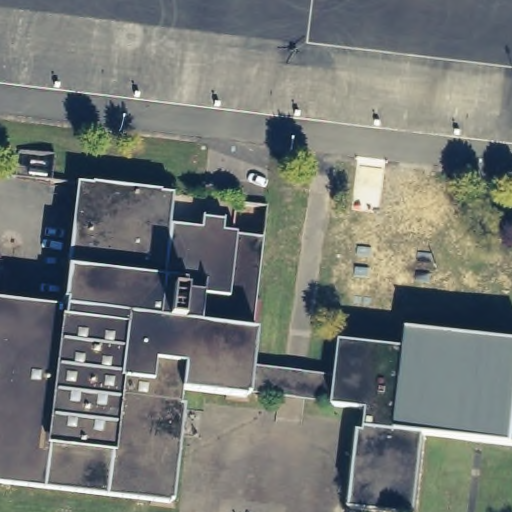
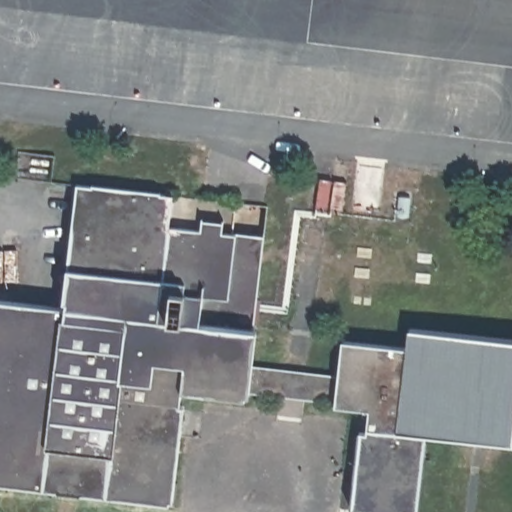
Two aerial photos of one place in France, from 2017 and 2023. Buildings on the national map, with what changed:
unchanged [(404,344),(407,327),(512,339),(512,442),(425,433),(417,512),(352,512),(358,430),(367,430),(370,408),(332,405),(250,396),(187,389),(174,506),(0,486),(0,297),(60,302),(75,181),(171,191),(168,226),(197,229),(199,216),(225,217),(223,232),(263,237),(255,360),(337,368),(341,338),(404,344)]

